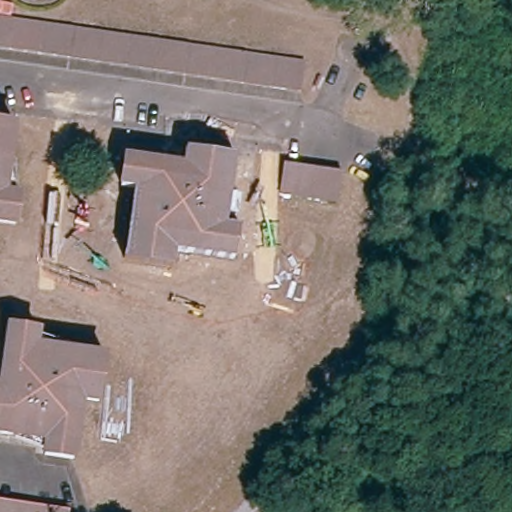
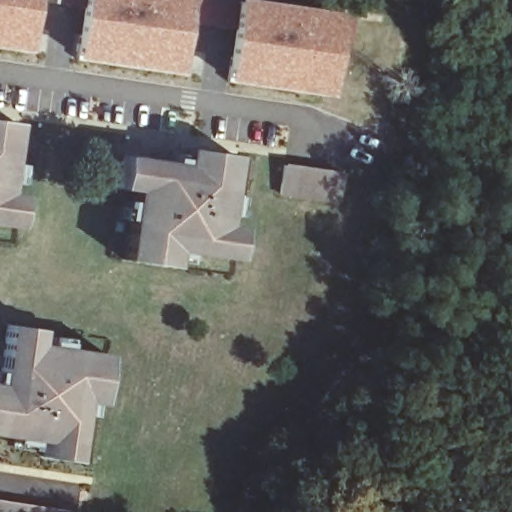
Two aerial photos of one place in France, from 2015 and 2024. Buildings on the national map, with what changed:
new [(24,55),(0,51),(0,0),(33,0),(24,55)]
new [(60,0),(208,0),(356,23),(351,51),(336,48),(328,96),(230,77),(236,33),(184,25),(177,73),(79,57),(86,9),(60,5),(60,0)]
demolished [(152,44),(307,65),(302,91),(187,77),(80,60),(0,49),(0,21),(57,29),(152,44)]
unchanged [(5,198),(22,199),(19,226),(0,224),(0,123),(15,125),(5,198)]
unchanged [(127,156),(183,164),(185,150),(229,155),(221,224),(239,226),(235,256),(176,247),(174,261),(127,254),(136,190),(123,188),(127,156)]
unchanged [(288,166),(341,172),(337,202),(285,197),(288,166)]
demolished [(2,341),(0,341),(0,314),(6,314),(2,341)]
unchanged [(12,329),(42,333),(40,348),(110,356),(102,402),(85,400),(75,458),(47,454),(49,442),(0,435),(0,390),(3,390),(12,329)]
unchanged [(0,512),(0,502),(66,512),(0,512)]

